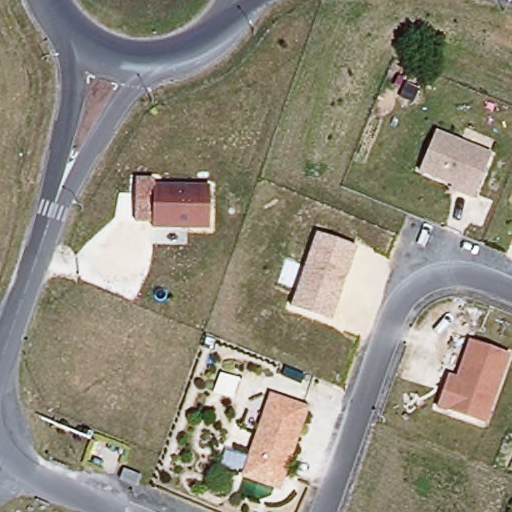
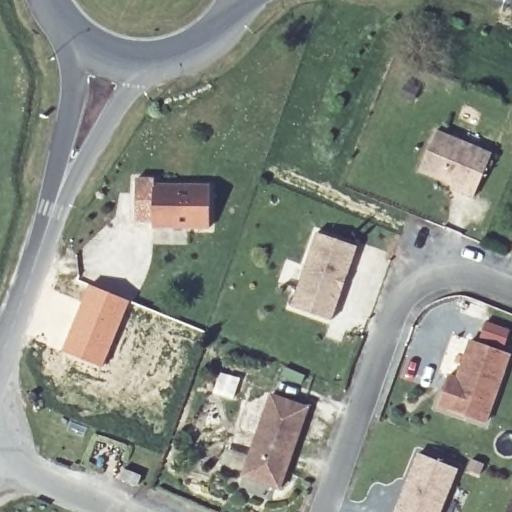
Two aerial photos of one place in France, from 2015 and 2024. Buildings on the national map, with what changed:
unchanged [(433,133),(491,156),(473,200),(418,171),(433,133)]
unchanged [(210,184),(210,230),(154,229),(154,221),(135,221),(135,175),(155,176),(154,183),(210,184)]
unchanged [(318,231),(359,247),(332,320),(291,306),(318,231)]
new [(88,283),(130,301),(102,367),(61,350),(88,283)]
unchanged [(457,375),(470,338),(512,353),(488,425),(435,407),(447,372),(457,375)]
unchanged [(280,488),(244,476),(271,395),(308,408),(280,488)]
new [(418,453),(456,468),(438,512),(394,512),(418,453)]
unchanged [(130,464),(147,471),(143,481),(125,474),(130,464)]

